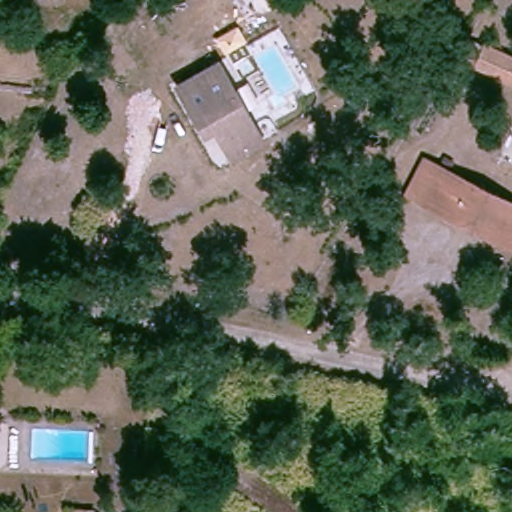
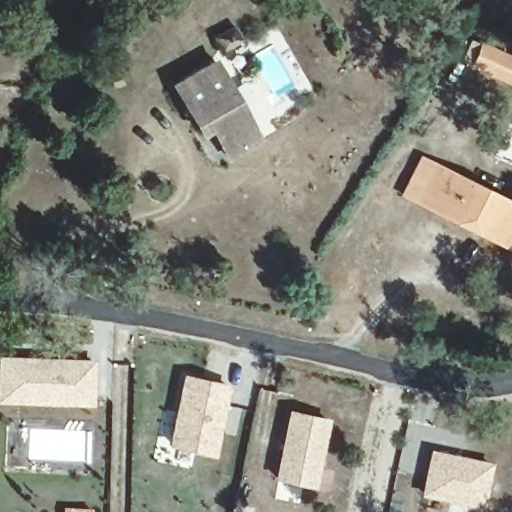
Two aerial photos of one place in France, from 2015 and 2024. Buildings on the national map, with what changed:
unchanged [(472,65),(480,44),(512,57),(512,81),(472,65)]
unchanged [(199,130),(188,111),(172,84),(213,60),(232,92),(258,139),(227,156),(210,127),(200,132),(199,130)]
unchanged [(420,197),(407,190),(423,155),(437,160),(512,195),(512,239),(420,197)]
new [(94,406),(0,403),(0,355),(98,358),(94,406)]
new [(184,374),(230,385),(219,457),(169,446),(184,374)]
new [(277,480),(291,413),(334,421),(319,491),(277,480)]
demolished [(268,472),(234,467),(236,448),(270,453),(268,472)]
new [(434,450),(497,465),(486,511),(423,496),(434,450)]
demolished [(327,461),(324,483),(301,480),(305,458),(327,461)]
new [(63,506),(95,508),(95,512),(63,512),(63,506)]

